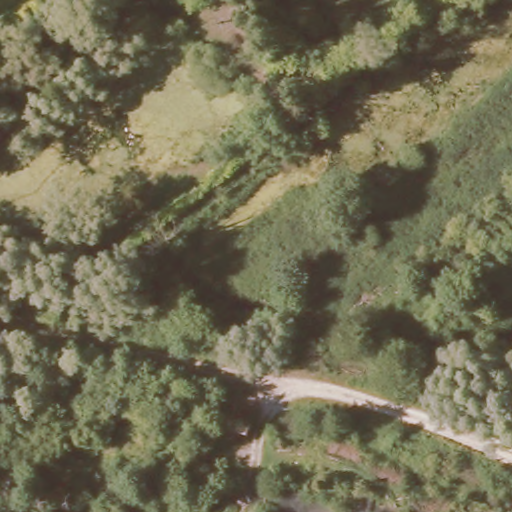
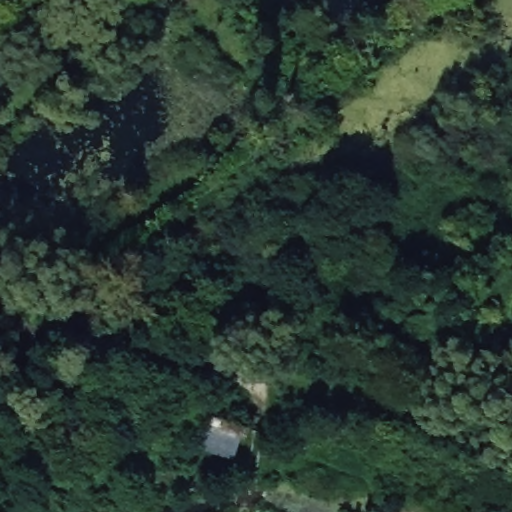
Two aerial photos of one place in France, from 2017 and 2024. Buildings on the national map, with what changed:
[]

